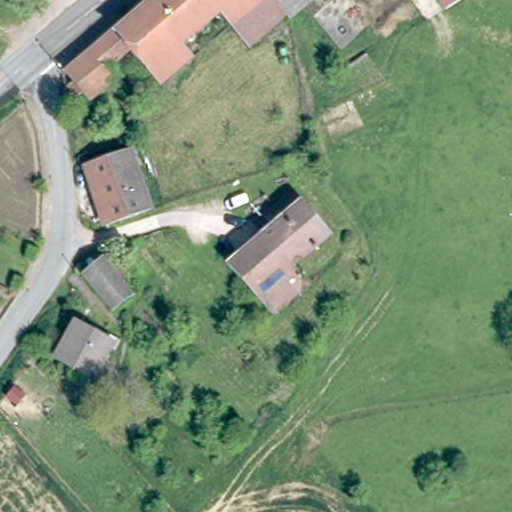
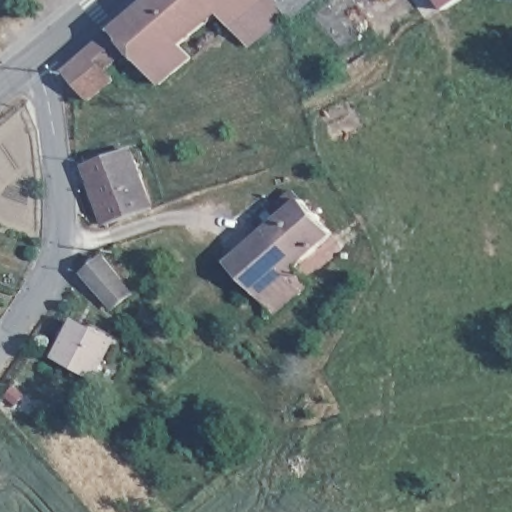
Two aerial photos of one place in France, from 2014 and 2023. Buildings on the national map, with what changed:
unchanged [(61,75),(112,33),(151,0),(273,0),(287,18),(252,47),(237,28),(231,32),(222,20),(181,52),(192,66),(159,92),(131,57),(105,77),(115,89),(87,109),(78,98),(67,106),(56,91),(67,82),(61,75)]
unchanged [(287,18),(273,0),(316,0),(290,21),(287,18)]
unchanged [(433,0),(473,0),(445,19),(433,0)]
unchanged [(110,228),(87,169),(132,152),(154,210),(110,228)]
unchanged [(250,222),(290,191),(333,241),(297,271),(312,288),(274,318),(230,267),(263,238),(250,222)]
unchanged [(78,274),(102,255),(132,292),(110,310),(78,274)]
unchanged [(115,339),(94,379),(57,360),(75,322),(90,330),(93,323),(123,339),(120,343),(115,339)]
unchanged [(7,397),(17,389),(25,399),(15,406),(7,397)]

